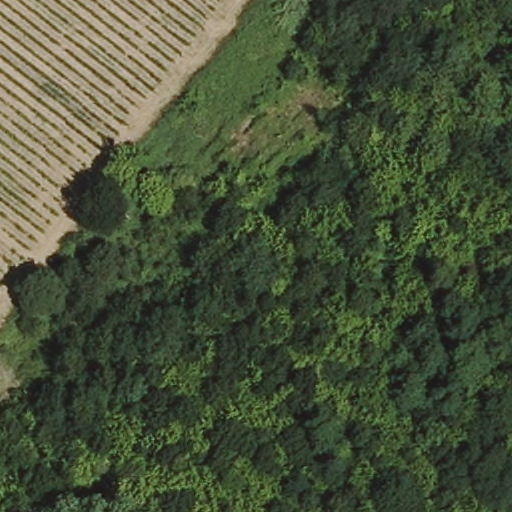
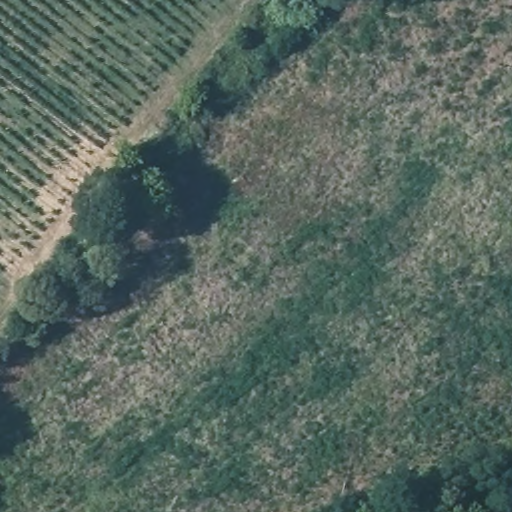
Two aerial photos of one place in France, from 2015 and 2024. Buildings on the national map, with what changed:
unchanged [(147,187),(125,216),(110,200),(125,171),(147,187)]

